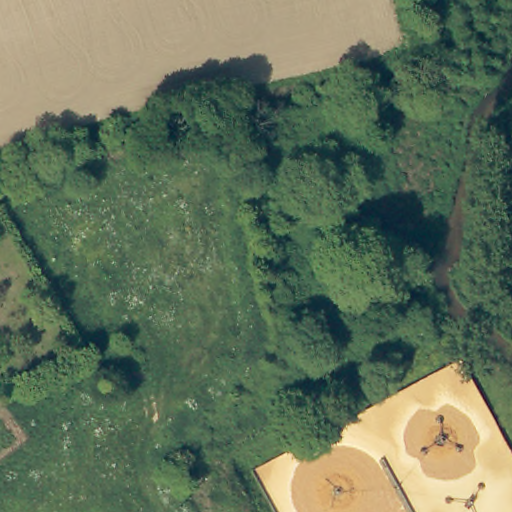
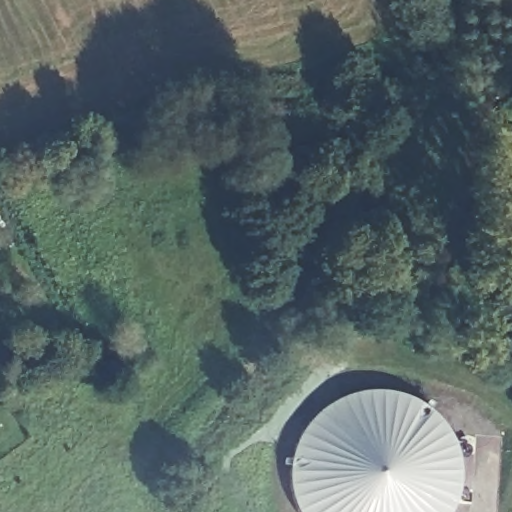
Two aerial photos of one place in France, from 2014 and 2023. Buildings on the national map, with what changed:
demolished [(512,512),(276,512),(251,466),(411,377),(457,355),(512,457),(512,512)]

